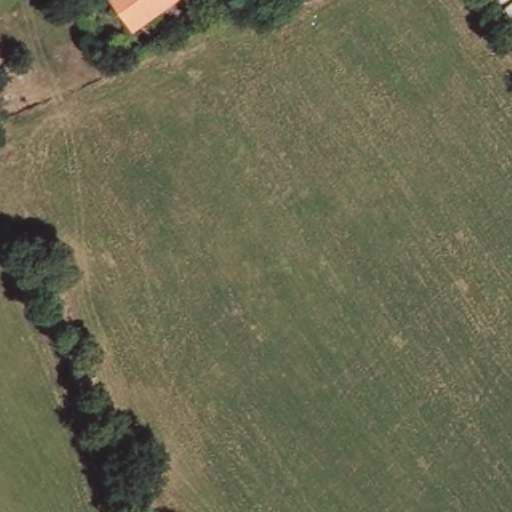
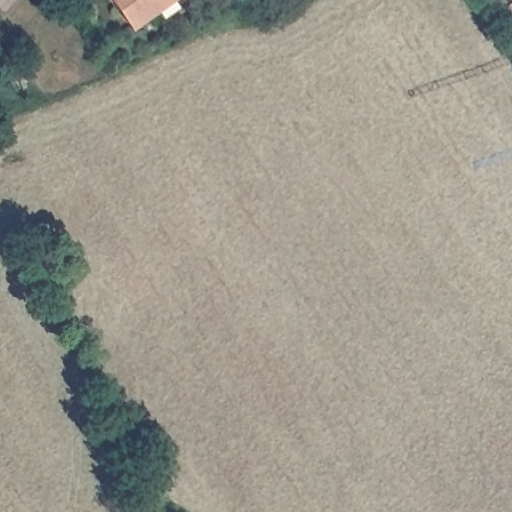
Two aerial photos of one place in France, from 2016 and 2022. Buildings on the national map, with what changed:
unchanged [(166,0),(134,31),(103,1),(104,0),(166,0)]

